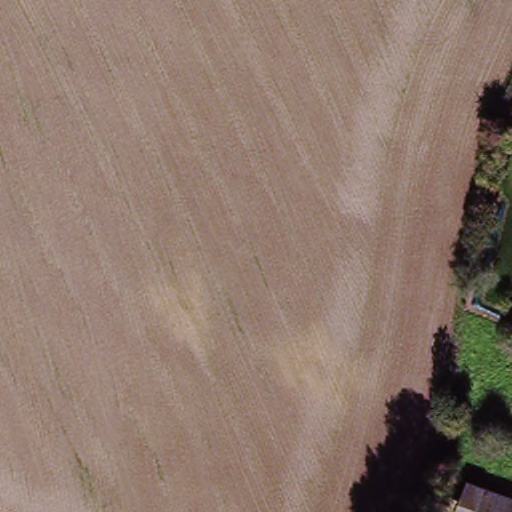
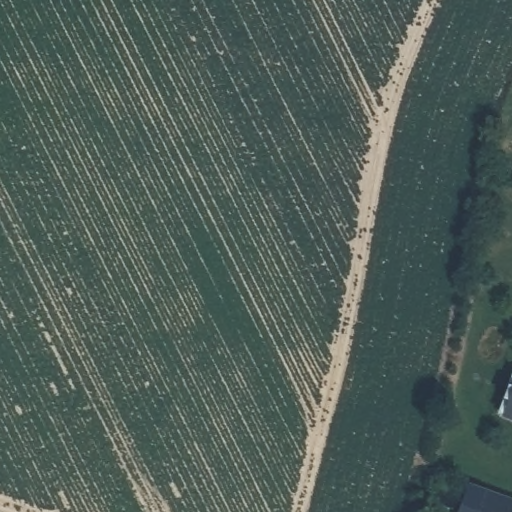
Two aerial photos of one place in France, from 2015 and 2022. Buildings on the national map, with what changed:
new [(500,416),(512,380),(512,420),(500,416)]
unchanged [(463,482),(512,496),(512,512),(456,512),(463,482)]

